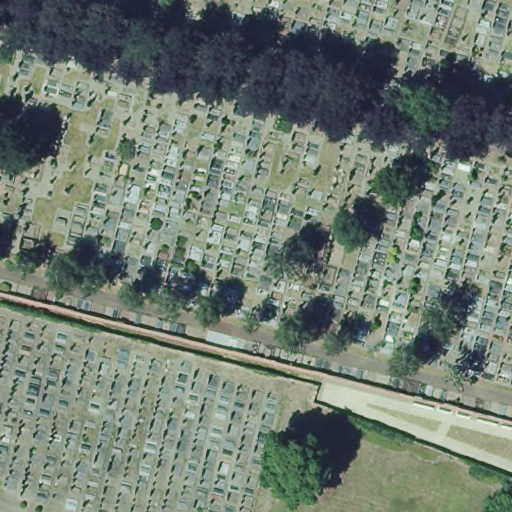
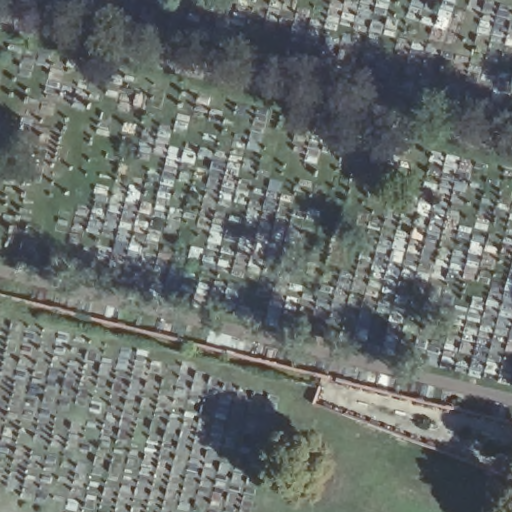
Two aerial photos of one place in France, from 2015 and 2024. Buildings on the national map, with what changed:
unchanged [(467,467),(476,441),(512,455),(512,485),(467,467)]

